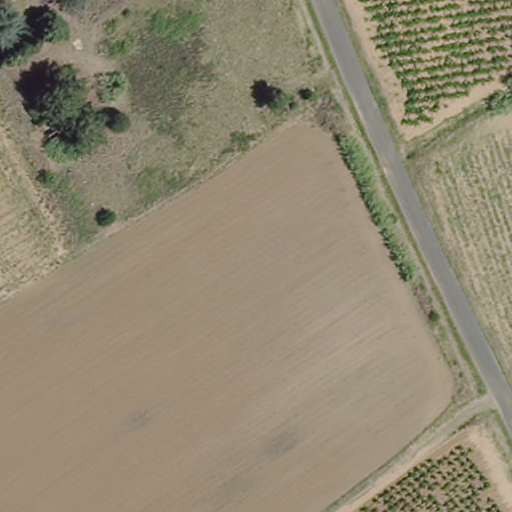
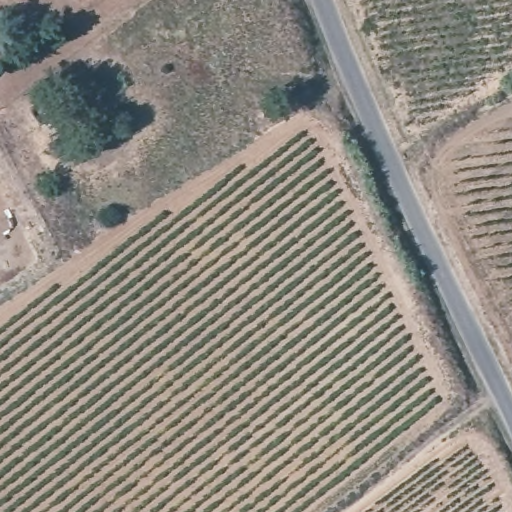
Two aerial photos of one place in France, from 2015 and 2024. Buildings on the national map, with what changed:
unchanged [(1,0),(14,0),(5,6),(1,0)]
unchanged [(65,109),(41,123),(34,109),(58,95),(65,109)]

